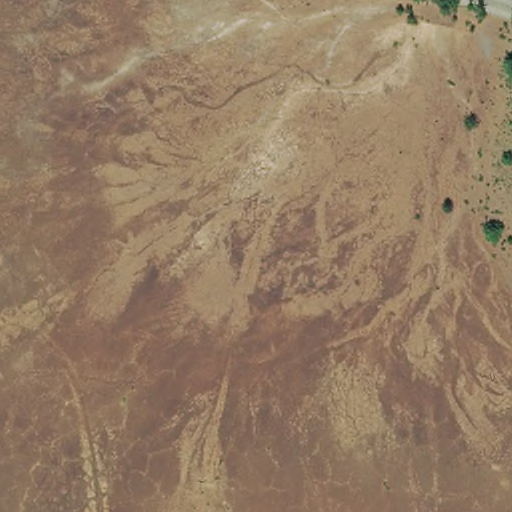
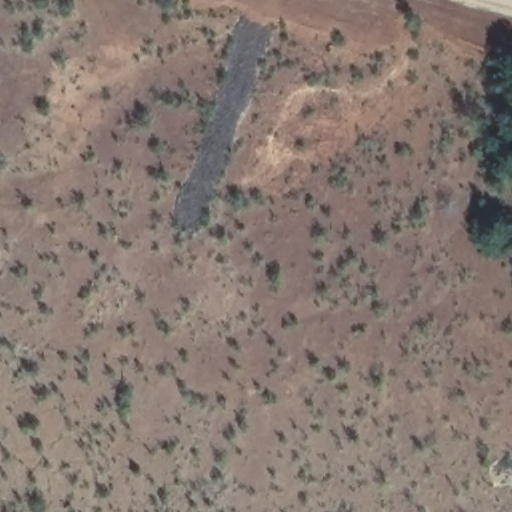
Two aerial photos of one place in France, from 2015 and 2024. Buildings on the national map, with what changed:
[]

